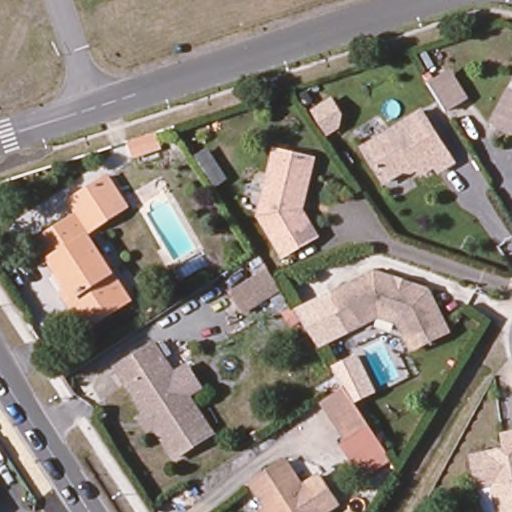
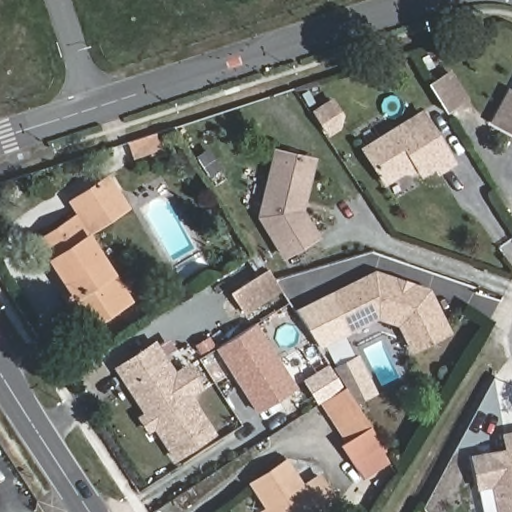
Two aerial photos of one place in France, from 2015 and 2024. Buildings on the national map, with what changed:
new [(447,70),(464,98),(460,100),(442,112),(425,83),(443,73),(447,70)]
unchanged [(512,107),(512,132),(502,126),(512,107)]
unchanged [(453,163),(438,172),(434,166),(420,175),(414,165),(384,183),(362,148),(421,112),(453,163)]
unchanged [(313,165),(300,215),(316,241),(283,261),(259,221),(274,156),(313,165)]
unchanged [(134,300),(90,329),(72,302),(77,299),(40,243),(83,214),(75,202),(113,177),(126,198),(85,225),(134,300)]
unchanged [(274,279),(279,287),(243,311),(232,294),(268,270),(274,279)]
unchanged [(427,290),(448,332),(412,349),(399,324),(377,317),(318,345),(297,307),(374,273),(427,290)]
new [(292,386),(256,409),(217,348),(253,324),(292,386)]
unchanged [(213,433),(175,458),(116,368),(154,343),(213,433)]
unchanged [(365,419),(390,457),(362,474),(343,446),(349,442),(322,402),(344,387),(332,367),(352,357),(370,392),(355,403),(365,418),(365,419)]
unchanged [(478,492),(472,462),(505,455),(502,440),(512,438),(512,512),(497,512),(492,489),(478,492)]
unchanged [(327,512),(268,512),(251,483),(287,460),(303,486),(319,475),(338,505),(327,512)]

